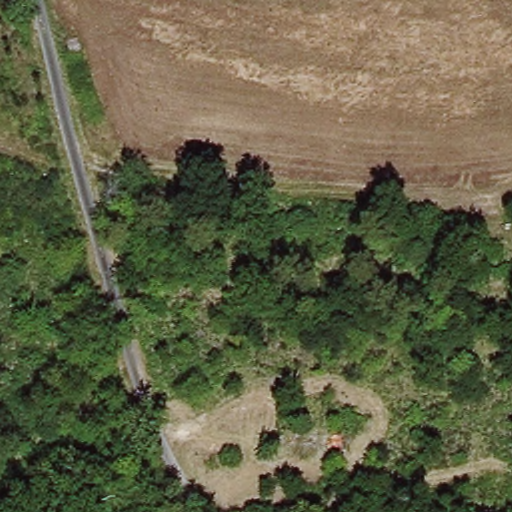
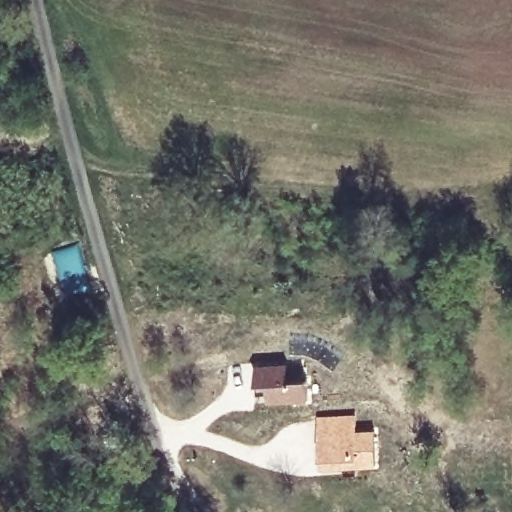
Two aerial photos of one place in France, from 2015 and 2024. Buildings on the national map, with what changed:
demolished [(261,379),(302,376),(305,401),(262,404),(261,379)]
new [(373,432),(376,465),(357,466),(357,473),(322,475),(320,436),(373,432)]

